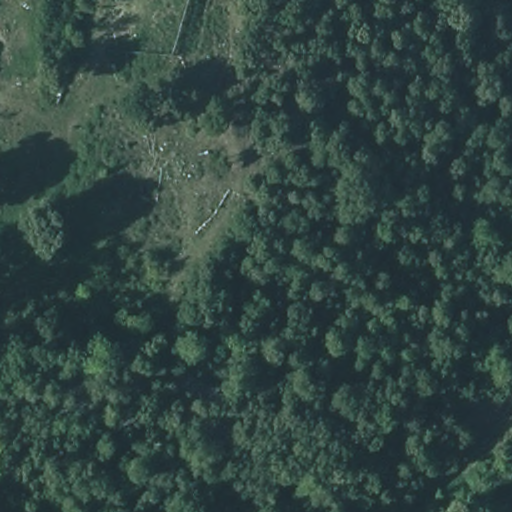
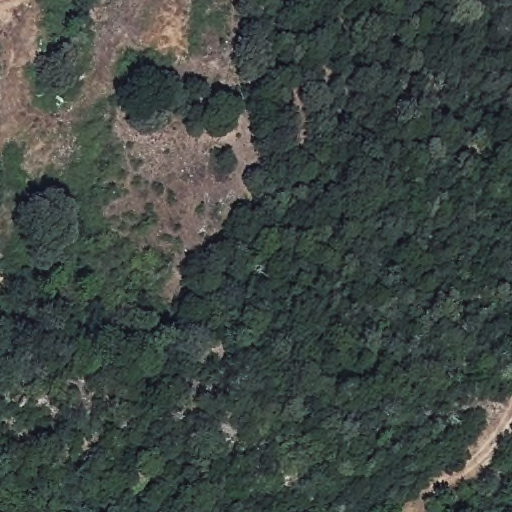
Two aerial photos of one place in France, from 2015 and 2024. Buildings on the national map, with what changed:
[]

